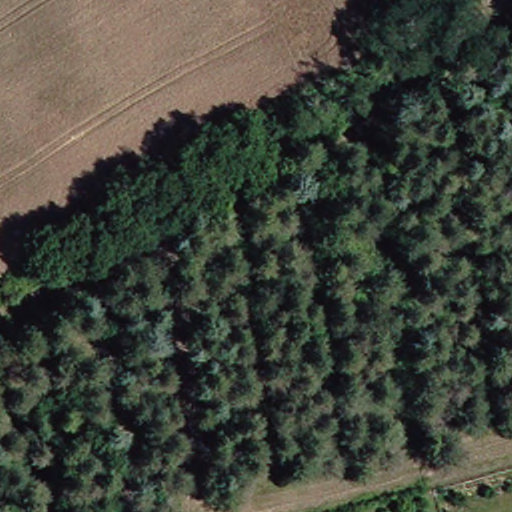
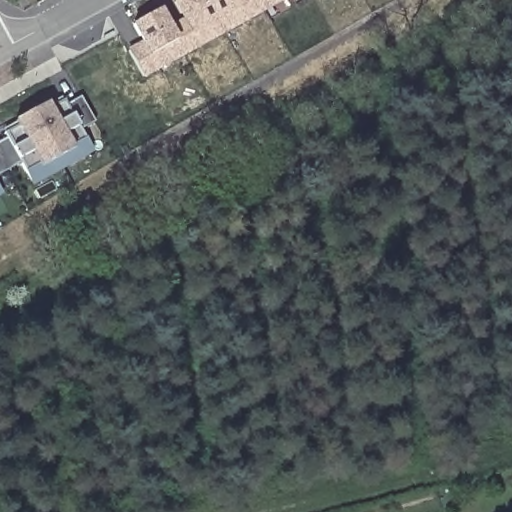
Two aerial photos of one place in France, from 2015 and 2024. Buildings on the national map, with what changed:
new [(146,80),(129,49),(146,41),(137,26),(169,9),(178,25),(188,20),(179,3),(184,0),(292,0),(146,80)]
new [(23,131),(55,113),(56,114),(68,107),(70,110),(71,110),(74,114),(87,107),(101,133),(87,141),(93,152),(98,162),(39,188),(34,178),(28,168),(1,182),(3,187),(8,196),(0,201),(0,141),(23,132),(23,131)]

